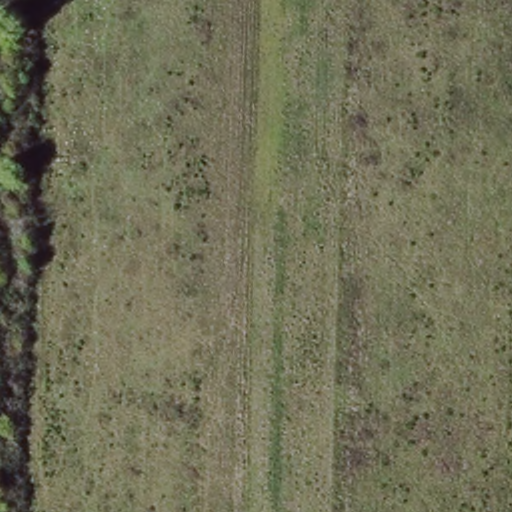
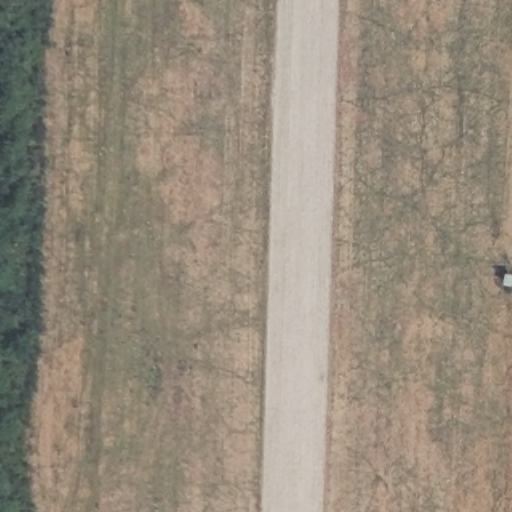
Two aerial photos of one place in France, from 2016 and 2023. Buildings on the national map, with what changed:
[]

